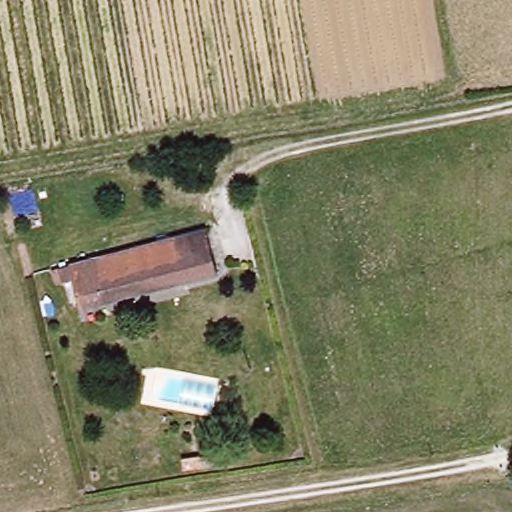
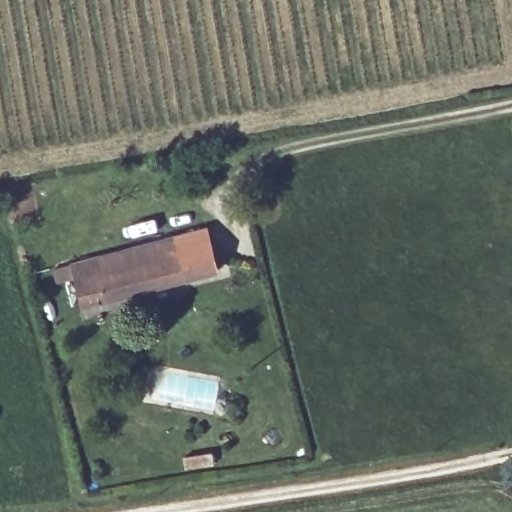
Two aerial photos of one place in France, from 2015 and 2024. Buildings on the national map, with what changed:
unchanged [(90,258),(202,226),(212,265),(81,302),(75,279),(71,263),(90,258)]
unchanged [(258,445),(247,448),(246,438),(256,435),(258,445)]

